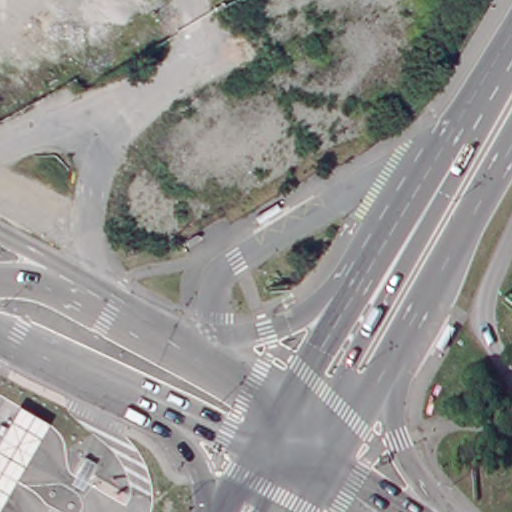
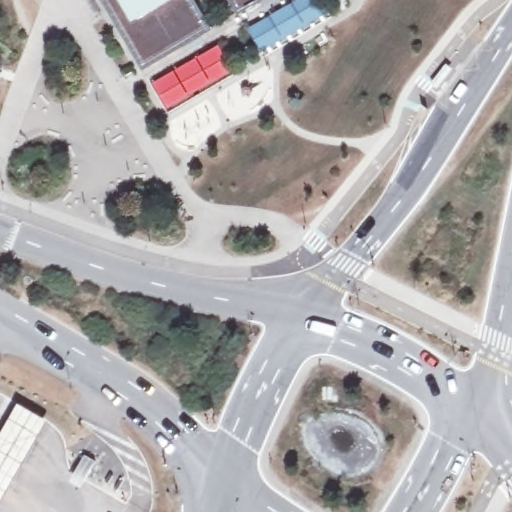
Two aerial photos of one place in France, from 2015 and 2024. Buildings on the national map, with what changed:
new [(142,72),(100,0),(193,0),(211,31),(142,72)]
demolished [(125,13),(118,0),(146,0),(125,13)]
new [(237,16),(228,0),(264,0),(237,16)]
new [(300,0),(320,0),(327,13),(262,52),(249,30),(300,0)]
new [(153,83),(219,46),(234,71),(168,110),(160,97),(153,83)]
unchanged [(50,421),(0,507),(0,437),(20,404),(50,421)]
unchanged [(89,464),(81,478),(73,474),(81,460),(89,464)]

